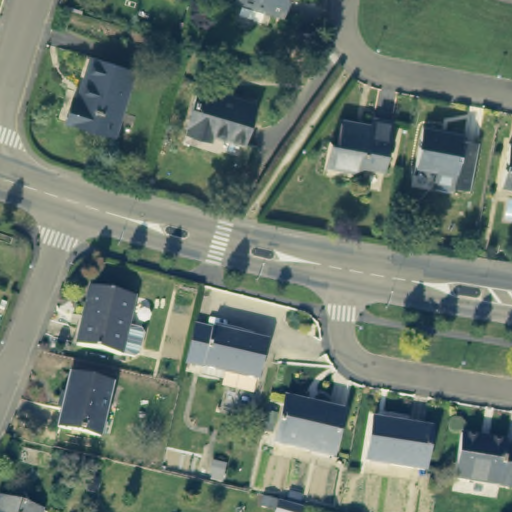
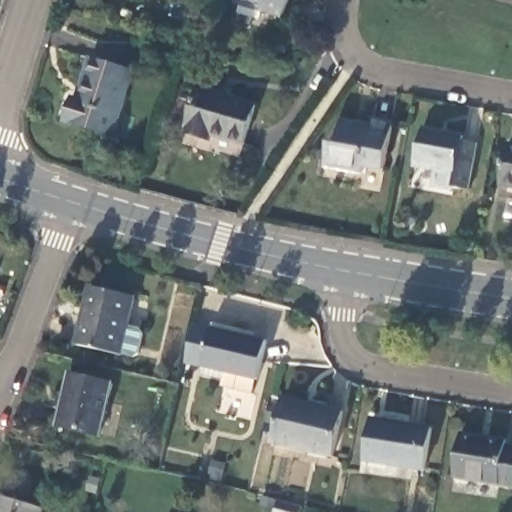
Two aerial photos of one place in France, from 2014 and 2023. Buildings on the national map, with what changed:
unchanged [(279,20),(232,5),(233,0),(286,0),(279,20)]
unchanged [(113,139),(65,125),(71,104),(79,105),(91,64),(131,75),(113,139)]
unchanged [(250,107),(239,145),(211,137),(209,142),(182,135),(196,91),(250,107)]
unchanged [(385,163),(365,159),(364,166),(325,159),(329,139),(340,140),(344,120),(373,125),(375,115),(394,119),(385,163)]
unchanged [(421,128),(466,135),(465,142),(480,145),(472,187),(453,184),(453,187),(432,184),(434,169),(414,166),(421,128)]
unchanged [(512,147),(512,189),(495,186),(503,145),(512,147)]
unchanged [(119,356),(76,347),(88,286),(131,295),(119,356)]
unchanged [(266,345),(257,382),(201,369),(209,333),(266,345)]
unchanged [(102,438),(59,430),(70,375),(113,383),(102,438)]
unchanged [(342,416),(332,460),(274,446),(284,403),(342,416)]
unchanged [(428,427),(422,468),(362,458),(368,418),(428,427)]
unchanged [(451,482),(458,439),(501,446),(500,452),(512,455),(512,489),(512,492),(451,482)]
unchanged [(0,512),(0,498),(42,509),(41,512),(0,512)]
unchanged [(305,510),(304,512),(278,512),(280,504),(305,510)]

